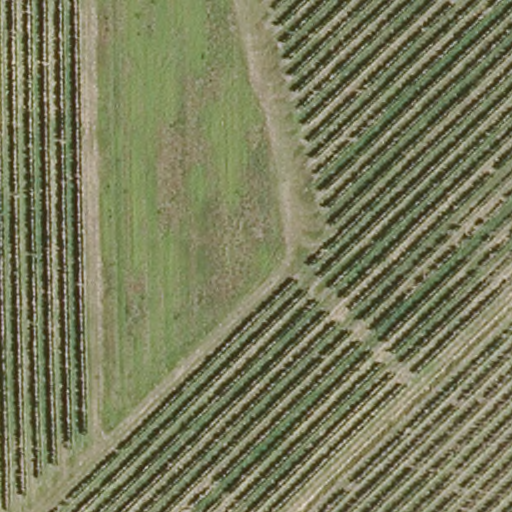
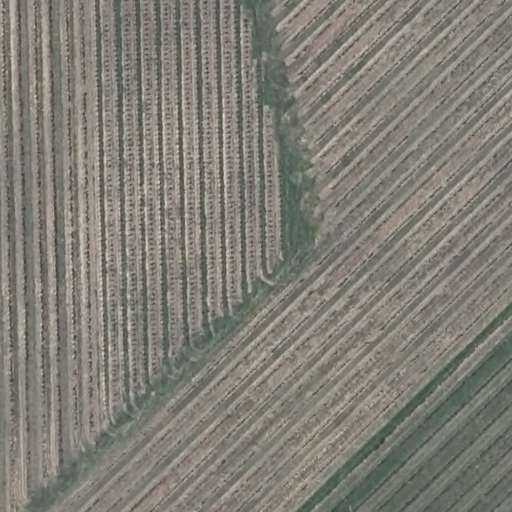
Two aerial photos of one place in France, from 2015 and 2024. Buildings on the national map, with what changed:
[]

